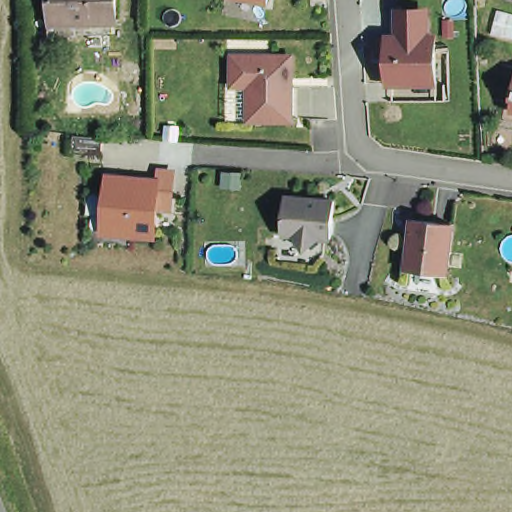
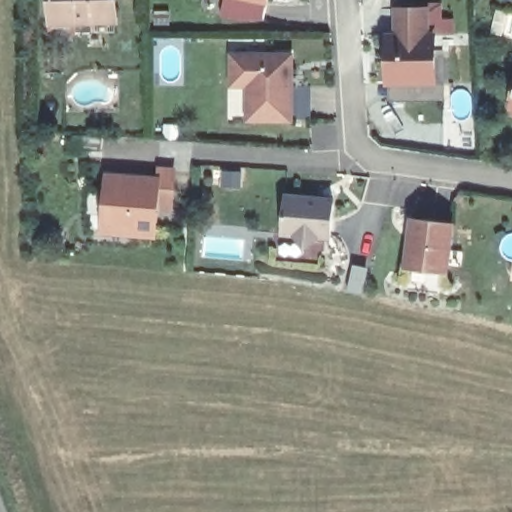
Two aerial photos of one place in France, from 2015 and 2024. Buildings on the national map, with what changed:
unchanged [(44,31),(44,20),(42,20),(42,0),(107,0),(107,19),(67,19),(67,31),(44,31)]
unchanged [(267,4),(245,0),(268,0),(267,4)]
unchanged [(392,35),(391,6),(430,6),(429,36),(436,35),(436,84),(383,87),(382,35),(392,35)]
unchanged [(292,56),(293,120),(253,121),(252,86),(236,86),(236,56),(292,56)]
unchanged [(155,174),(156,165),(176,167),(172,211),(157,209),(154,239),(97,236),(105,169),(155,174)]
unchanged [(331,202),(330,238),(282,235),(285,199),(331,202)]
unchanged [(451,221),(445,266),(440,270),(430,268),(426,263),(407,261),(413,216),(451,221)]

